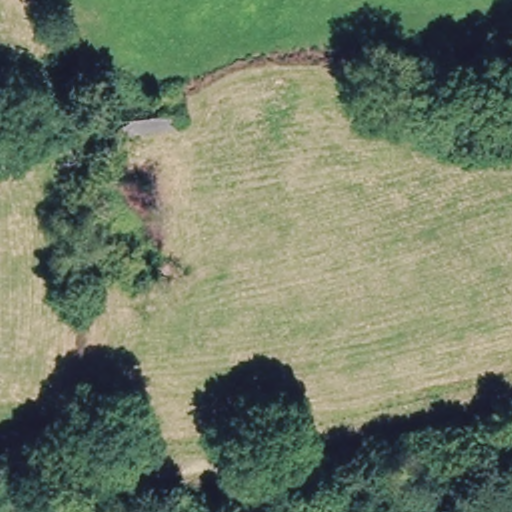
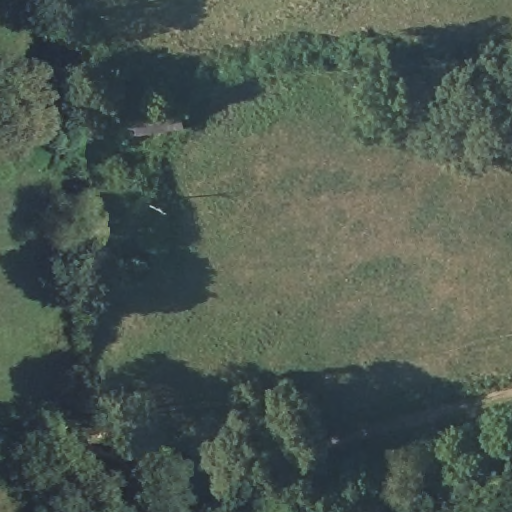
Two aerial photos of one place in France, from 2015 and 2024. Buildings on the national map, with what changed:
unchanged [(122,99),(181,100),(181,129),(125,134),(122,99)]

